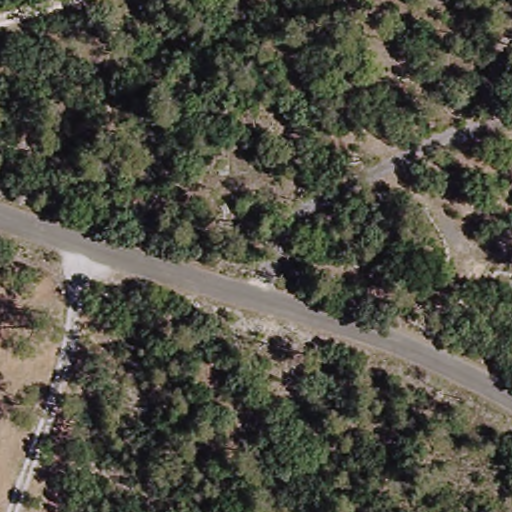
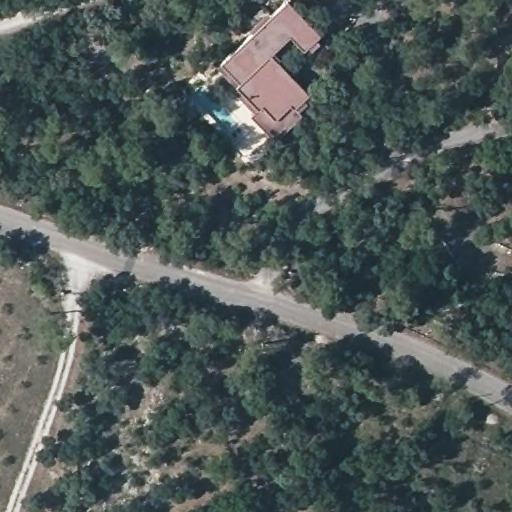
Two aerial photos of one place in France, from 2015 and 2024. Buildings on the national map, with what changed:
new [(242,80),(224,61),(288,0),(292,0),(323,31),(306,47),(293,34),(274,52),(311,90),(296,105),(298,107),(272,132),(254,114),(261,106),(238,83),(242,80)]

